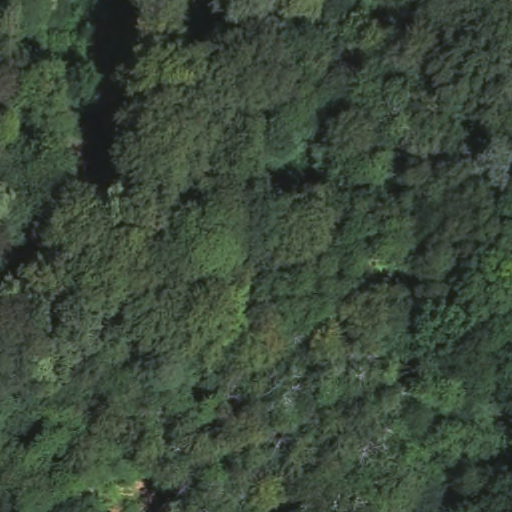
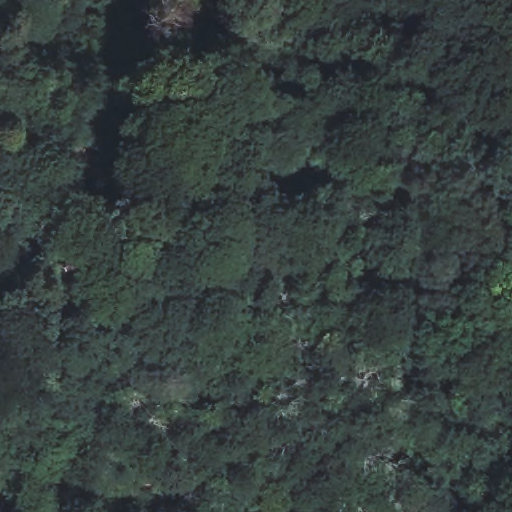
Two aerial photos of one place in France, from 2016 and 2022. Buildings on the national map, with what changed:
[]

